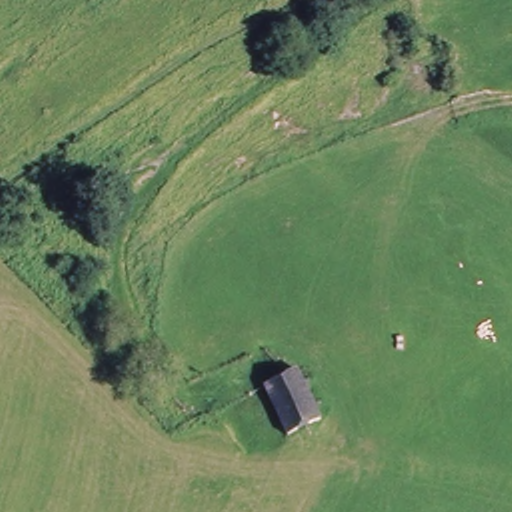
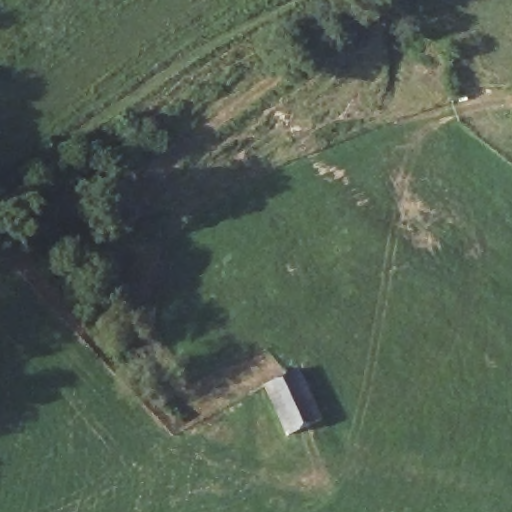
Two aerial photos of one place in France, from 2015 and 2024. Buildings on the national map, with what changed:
unchanged [(261,389),(297,373),(321,424),(286,438),(280,422),(261,389)]

